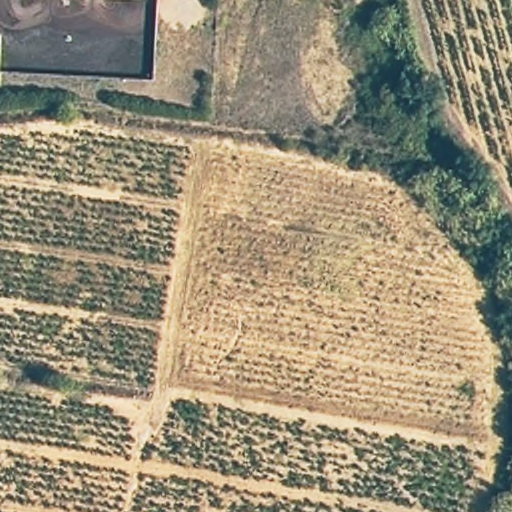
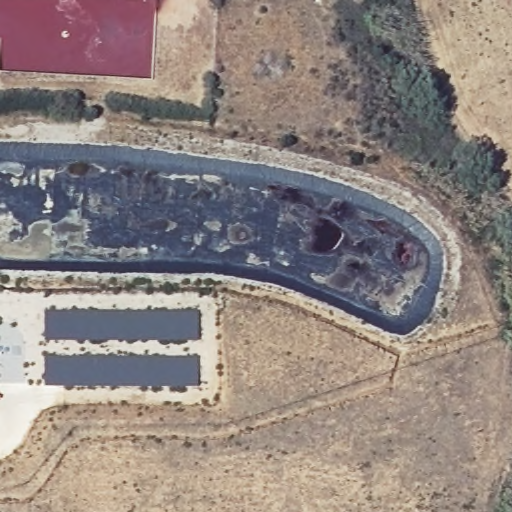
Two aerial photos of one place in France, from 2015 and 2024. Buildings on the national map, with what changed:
[]

